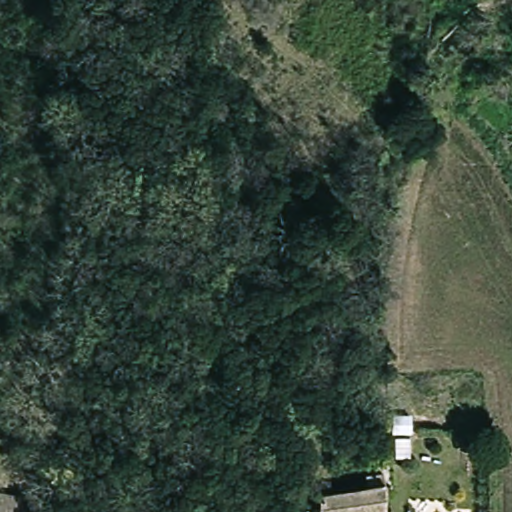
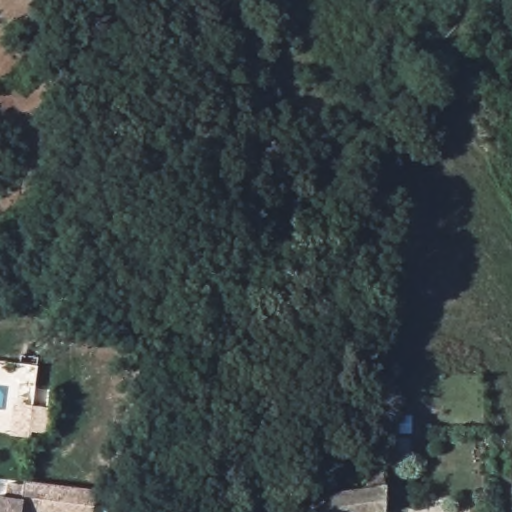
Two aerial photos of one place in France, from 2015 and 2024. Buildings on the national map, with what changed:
new [(37,384),(36,387),(53,387),(47,434),(31,432),(31,436),(11,433),(17,382),(37,384)]
unchanged [(314,487),(383,478),(381,512),(311,512),(314,487)]
new [(7,483),(25,485),(25,481),(96,490),(93,512),(0,512),(0,496),(5,497),(7,483)]
demolished [(0,493),(22,494),(19,512),(0,512),(0,493)]

